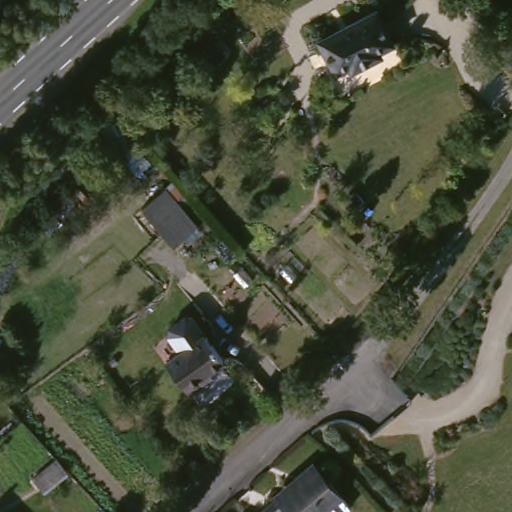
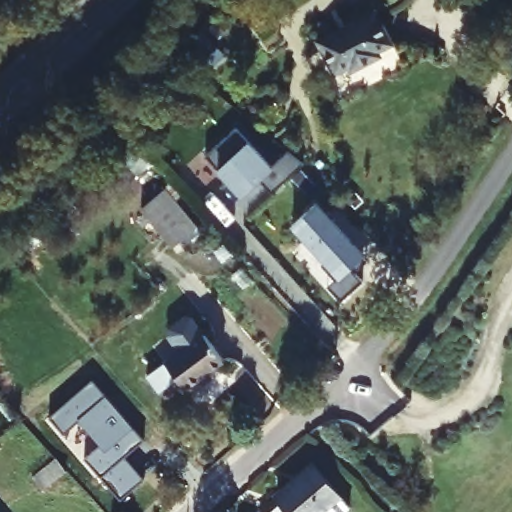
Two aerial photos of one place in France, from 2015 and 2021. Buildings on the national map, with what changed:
unchanged [(379,7),(398,44),(386,50),(388,54),(359,67),(358,64),(343,70),(324,34),(379,7)]
new [(230,129),(266,168),(282,152),(298,165),(266,194),(253,181),(231,201),(219,188),(224,183),(200,157),(230,129)]
unchanged [(149,215),(172,196),(200,231),(177,250),(149,215)]
new [(316,266),(320,263),(288,227),(312,205),(358,257),(362,263),(350,274),(358,283),(343,297),(335,303),(321,288),(329,281),(316,266)]
new [(178,351),(167,336),(168,327),(186,316),(196,318),(225,362),(209,373),(213,380),(190,395),(164,361),(178,351)]
demolished [(200,340),(222,365),(202,381),(204,384),(190,398),(166,370),(200,340)]
new [(89,380),(141,439),(133,446),(136,449),(125,458),(145,482),(122,502),(83,459),(99,445),(77,421),(62,435),(47,417),(89,380)]
unchanged [(343,503),(335,512),(267,512),(287,489),(281,483),(298,465),(343,503)]

